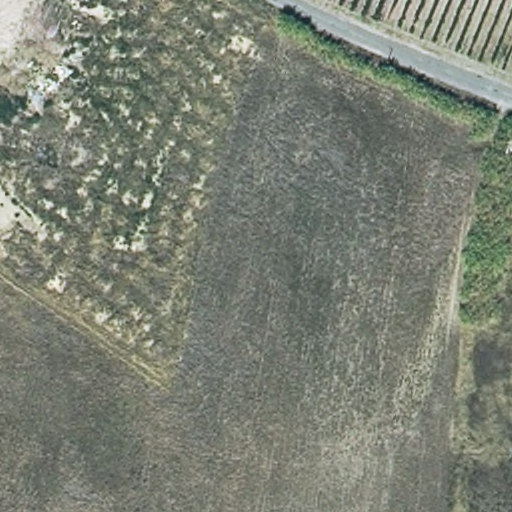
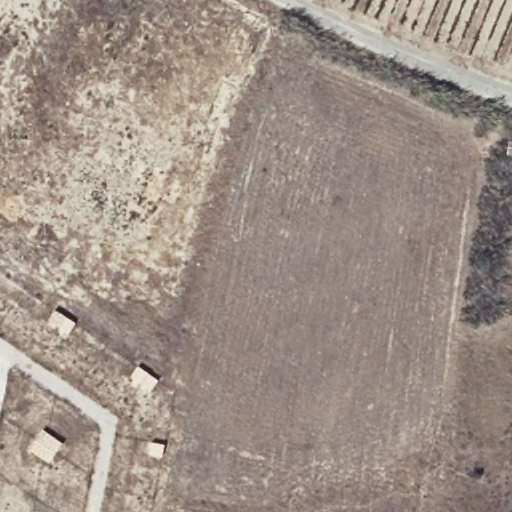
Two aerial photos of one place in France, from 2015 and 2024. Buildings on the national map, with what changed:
unchanged [(512,138),(512,156),(502,155),(505,137),(512,138)]

